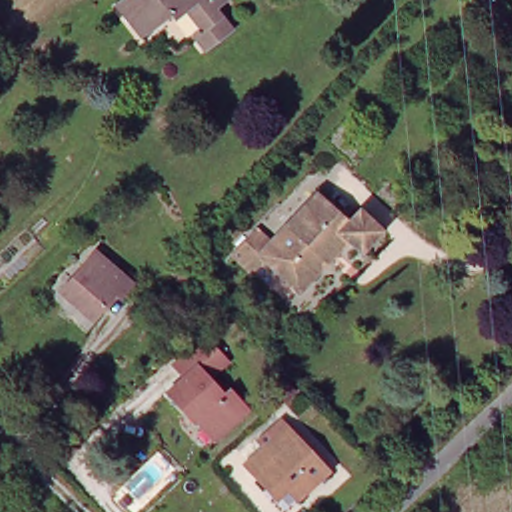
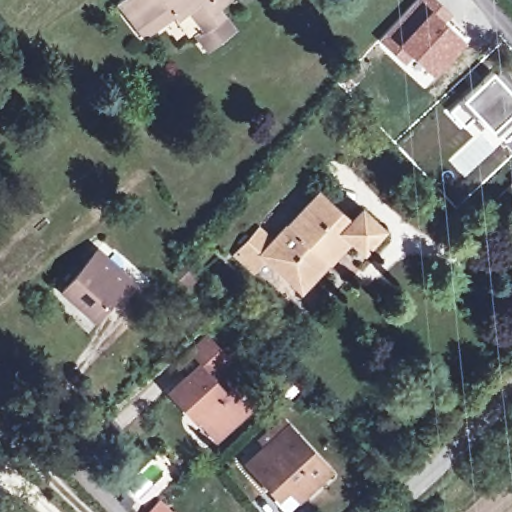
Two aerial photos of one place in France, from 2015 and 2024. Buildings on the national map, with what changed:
unchanged [(235,29),(209,49),(196,33),(204,26),(191,9),(178,19),(175,14),(146,36),(120,1),(121,0),(229,0),(218,8),(235,29)]
new [(438,0),(451,12),(445,20),(465,39),(431,76),(409,56),(402,62),(375,39),(413,0),(438,0)]
new [(491,68),(512,90),(512,132),(501,142),(471,114),(458,99),(491,68)]
unchanged [(238,255),(262,229),(275,240),(319,193),(350,222),(362,209),(382,227),(363,248),(350,236),(301,289),(266,256),(254,269),(238,255)]
unchanged [(120,290),(96,317),(63,291),(98,251),(135,282),(125,294),(120,290)]
unchanged [(182,380),(175,371),(209,341),(232,366),(217,377),(251,416),(214,447),(167,392),(182,380)]
unchanged [(306,410),(313,402),(322,411),(315,417),(306,410)]
unchanged [(267,483),(245,459),(285,422),(325,466),(295,493),(283,480),(272,490),(267,483)]

